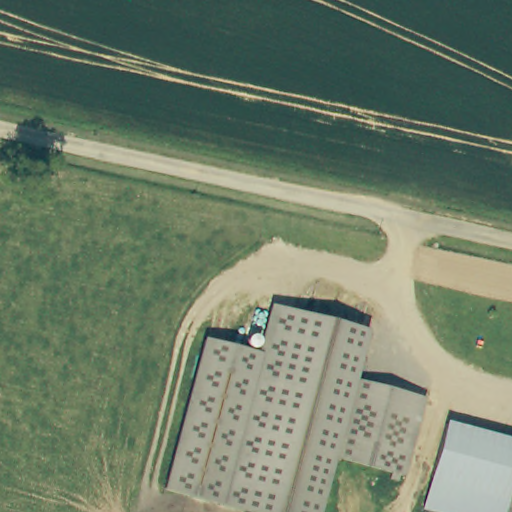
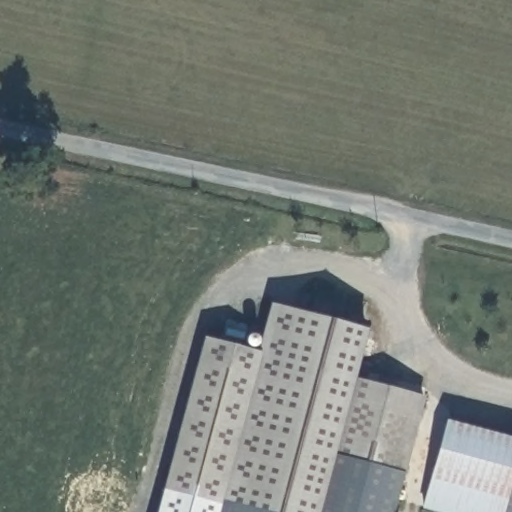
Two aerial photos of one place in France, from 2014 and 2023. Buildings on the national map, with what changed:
unchanged [(354,376),(425,395),(405,472),(333,454),(317,512),(265,512),(167,486),(208,336),(261,350),(274,304),(367,330),(354,376)]
unchanged [(446,425),(512,442),(512,486),(511,491),(434,472),(446,425)]
new [(317,512),(333,454),(405,472),(394,512),(317,512)]
unchanged [(506,512),(433,512),(425,510),(434,472),(511,491),(506,512)]
unchanged [(506,512),(511,491),(512,486),(512,512),(506,512)]
new [(265,512),(215,512),(218,500),(265,512)]

